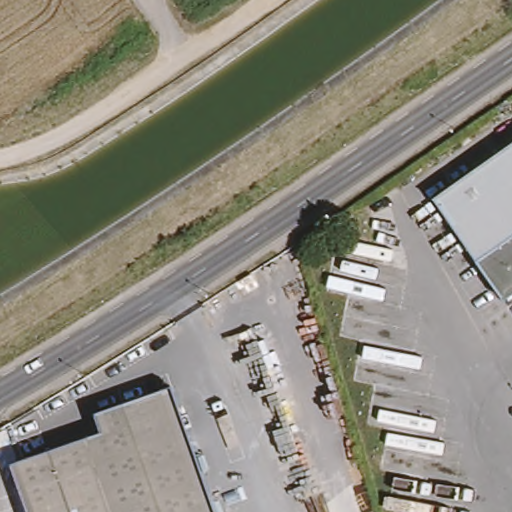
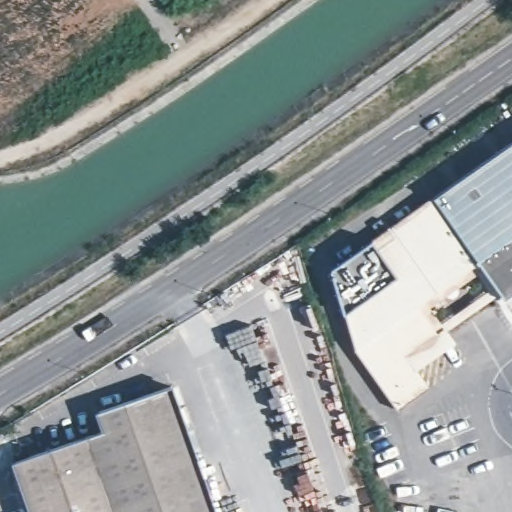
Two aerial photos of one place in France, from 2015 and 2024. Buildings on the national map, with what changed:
unchanged [(512,146),(512,300),(504,305),(431,204),(512,146)]
new [(475,264),(498,295),(448,330),(457,342),(417,371),(428,386),(397,408),(355,349),(331,270),(373,240),(431,204),(475,264)]
unchanged [(114,428),(108,410),(179,386),(222,512),(143,512),(114,428)]
unchanged [(21,460),(114,428),(143,512),(39,512),(21,460)]

